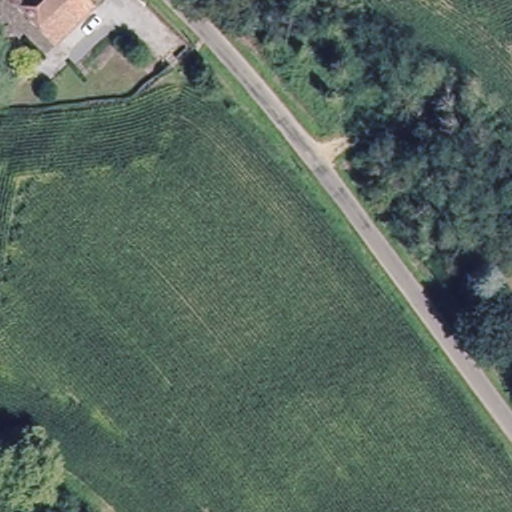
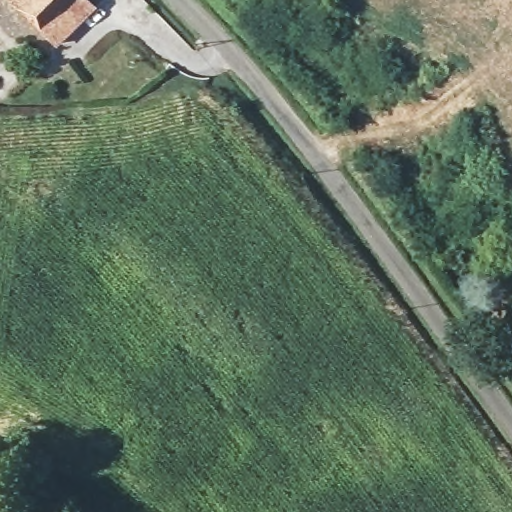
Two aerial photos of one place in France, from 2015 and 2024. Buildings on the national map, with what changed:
unchanged [(16,0),(86,0),(93,7),(53,43),(16,0)]

